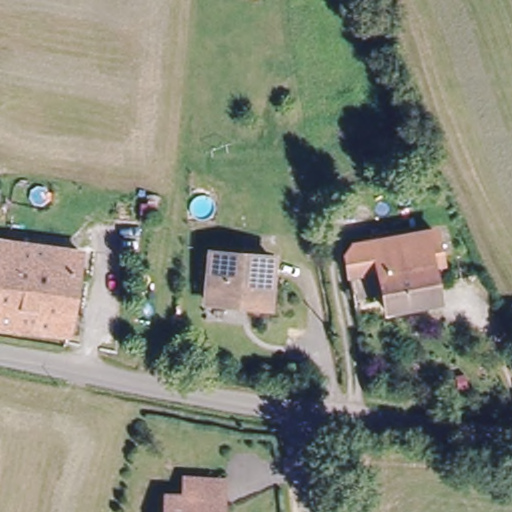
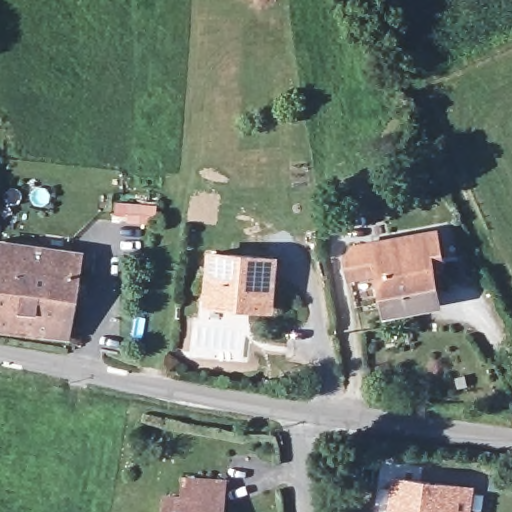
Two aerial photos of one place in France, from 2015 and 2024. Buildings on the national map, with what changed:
unchanged [(348,257),(352,246),(433,227),(447,287),(434,289),(435,303),(389,315),(386,300),(361,305),(348,257)]
unchanged [(77,246),(78,234),(103,237),(102,251),(86,249),(75,328),(73,332),(0,323),(0,238),(77,246)]
unchanged [(267,313),(204,305),(210,256),(272,263),(267,313)]
new [(389,512),(393,472),(475,485),(473,512),(389,512)]
unchanged [(190,494),(191,475),(228,477),(226,512),(169,512),(170,493),(190,494)]

